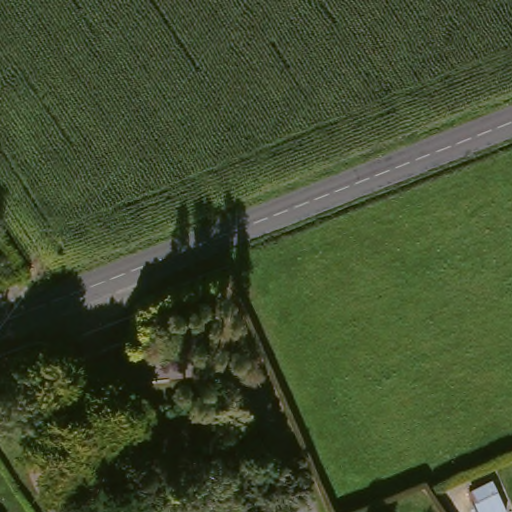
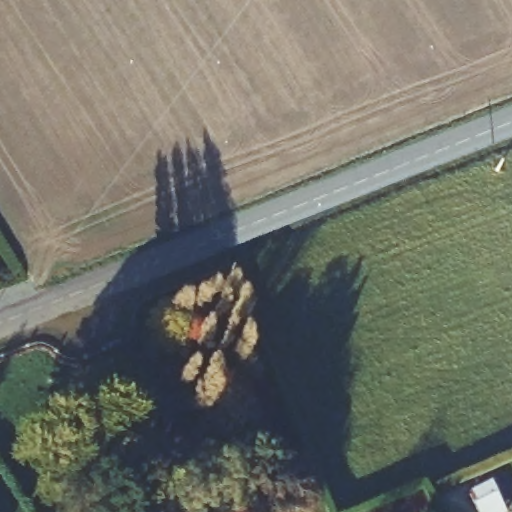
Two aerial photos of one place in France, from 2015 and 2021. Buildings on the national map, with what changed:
[]

